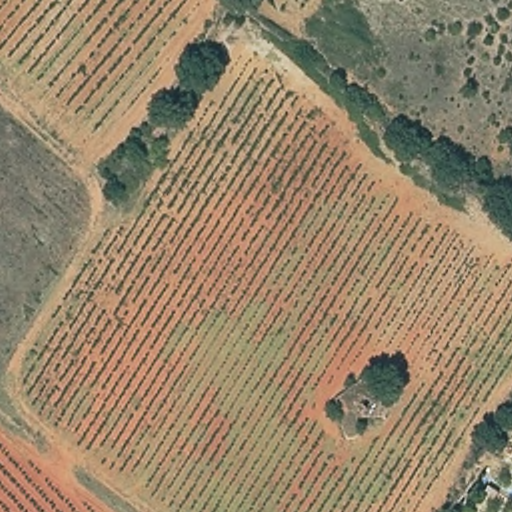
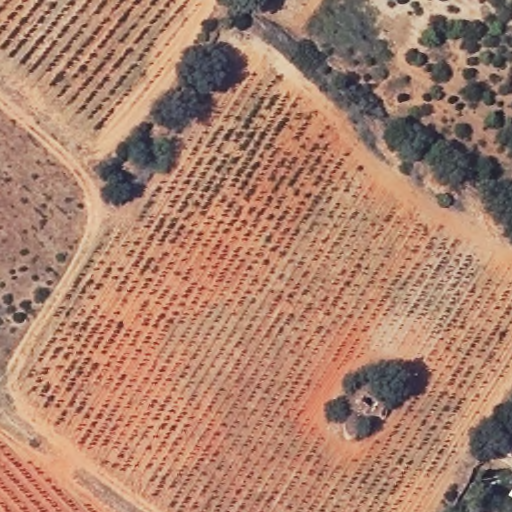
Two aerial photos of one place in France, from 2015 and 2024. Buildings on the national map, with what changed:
unchanged [(368,420),(349,398),(369,377),(389,398),(368,420)]

